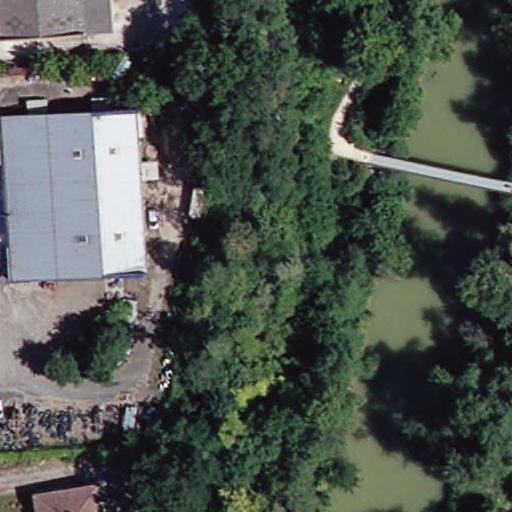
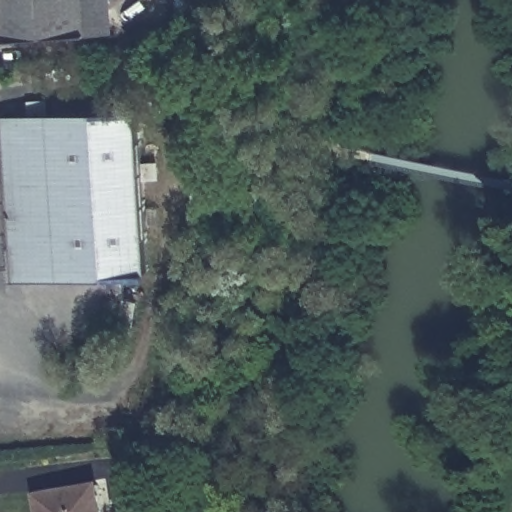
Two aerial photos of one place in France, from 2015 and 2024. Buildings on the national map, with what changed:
unchanged [(113,0),(115,30),(91,31),(1,38),(0,30),(0,0),(96,0),(113,0)]
unchanged [(9,116),(144,107),(155,269),(19,278),(16,229),(14,197),(9,116)]
unchanged [(126,298),(138,300),(131,351),(119,349),(126,298)]
unchanged [(138,448),(152,447),(153,460),(139,460),(138,448)]
unchanged [(40,495),(99,485),(104,512),(42,512),(40,495)]

